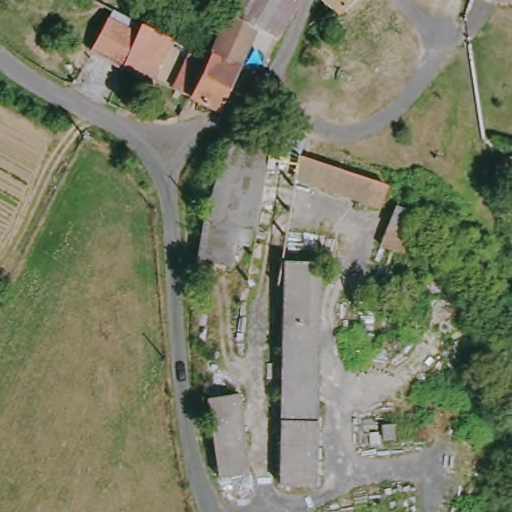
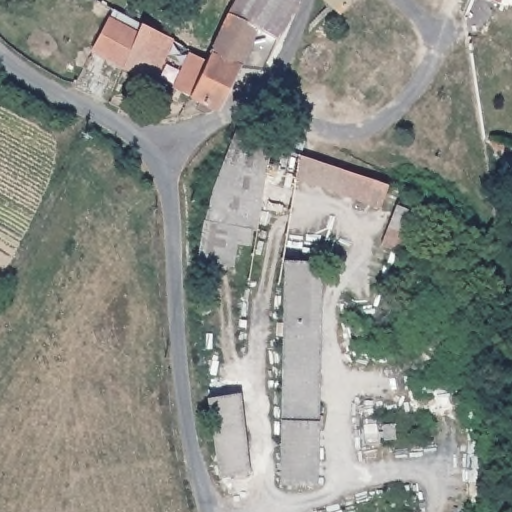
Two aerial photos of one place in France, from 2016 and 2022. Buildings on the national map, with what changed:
unchanged [(244,62),(222,105),(198,94),(220,46),(245,0),(260,0),(263,1),(264,0),(309,0),(283,38),(269,75),(244,62)]
unchanged [(340,20),(317,1),(319,0),(354,0),(340,20)]
unchanged [(497,0),(504,0),(503,2),(497,0)]
unchanged [(93,55),(120,10),(142,25),(174,36),(158,95),(93,55)]
unchanged [(201,263),(203,229),(233,138),(272,146),(255,245),(241,241),(235,265),(201,263)]
unchanged [(303,148),(397,180),(378,212),(291,177),(303,148)]
unchanged [(397,230),(414,235),(405,254),(389,247),(397,230)]
unchanged [(288,263),(325,262),(322,485),(282,486),(288,263)]
unchanged [(219,396),(248,395),(255,475),(225,476),(222,466),(219,396)]

